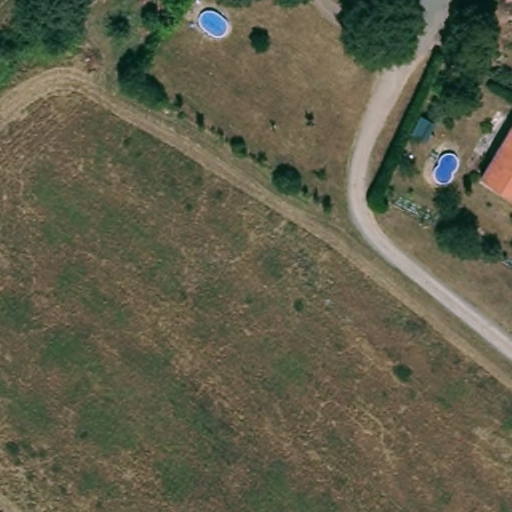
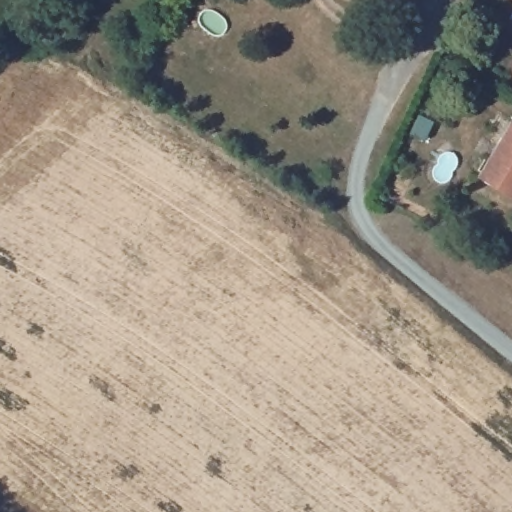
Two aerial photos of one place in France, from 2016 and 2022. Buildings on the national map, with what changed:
unchanged [(510,125),(512,126),(512,196),(481,181),(510,125)]

